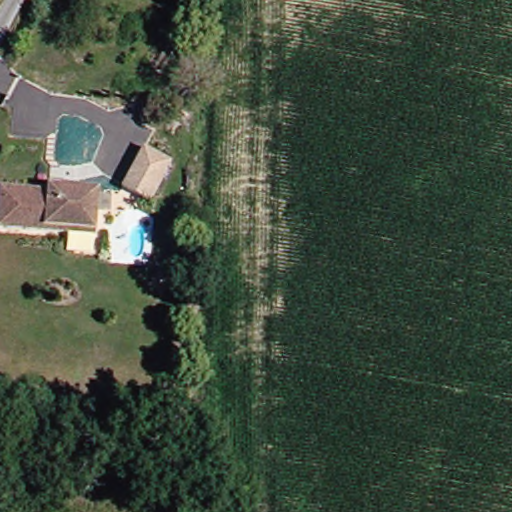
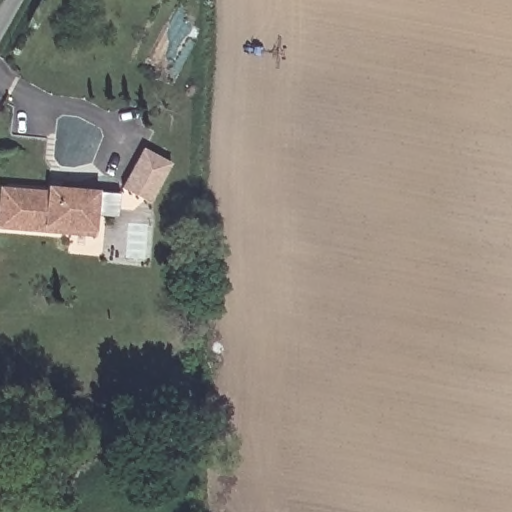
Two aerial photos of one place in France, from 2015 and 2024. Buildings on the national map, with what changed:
unchanged [(175,164),(150,203),(124,185),(147,148),(175,164)]
unchanged [(51,183),(99,188),(95,236),(0,226),(0,215),(2,186),(50,190),(51,183)]

